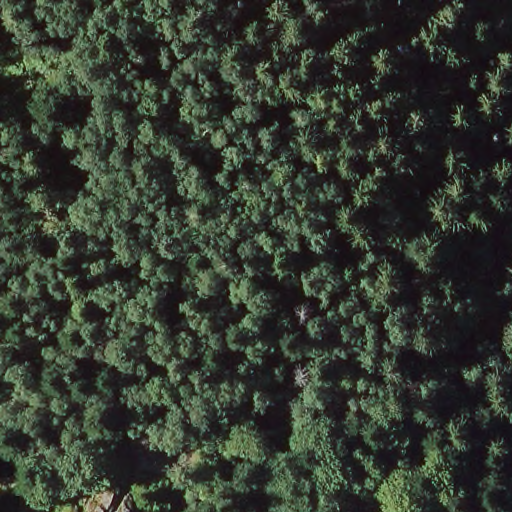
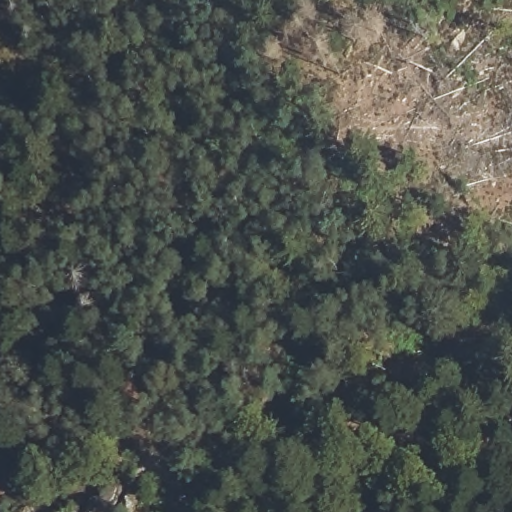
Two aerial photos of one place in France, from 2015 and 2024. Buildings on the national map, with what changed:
[]

